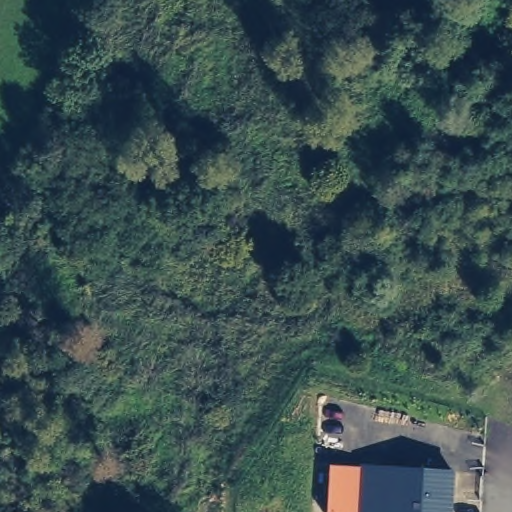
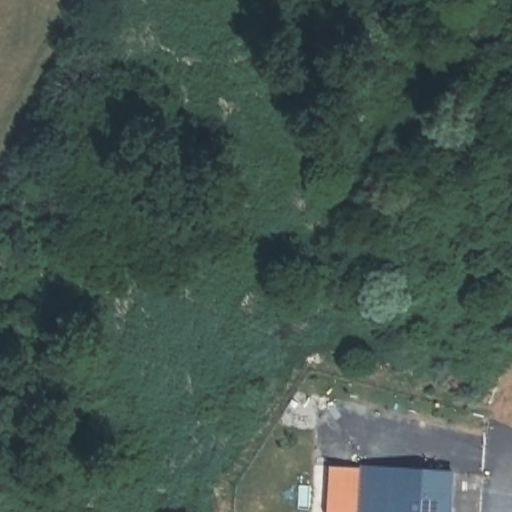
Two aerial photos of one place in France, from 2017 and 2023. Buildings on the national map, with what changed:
unchanged [(453,471),(452,512),(326,512),(328,465),(453,471)]

